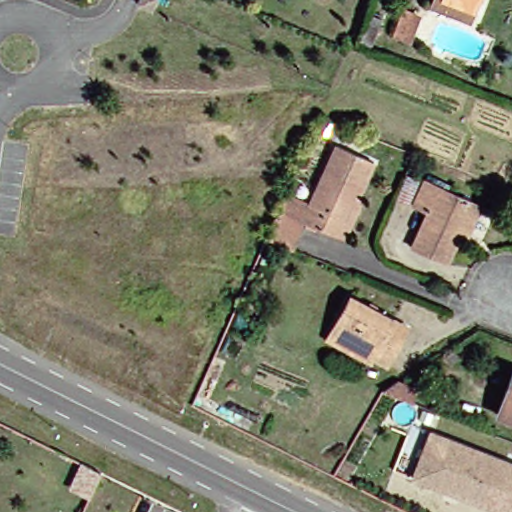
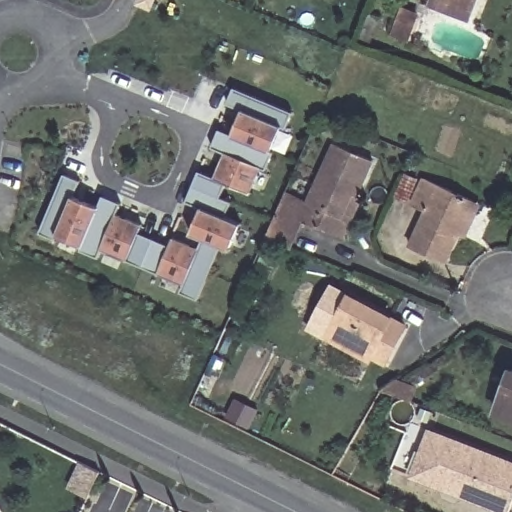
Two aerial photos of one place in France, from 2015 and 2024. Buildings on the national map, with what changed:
unchanged [(137,3),(139,0),(155,0),(151,9),(137,3)]
unchanged [(467,10),(441,0),(471,0),(467,10)]
unchanged [(416,14),(405,40),(391,34),(402,8),(416,14)]
new [(234,87),(293,112),(286,128),(281,126),(270,150),(233,135),(243,110),(227,104),(234,87)]
new [(154,239),(170,245),(173,237),(199,249),(204,239),(191,234),(201,207),(185,201),(199,170),(214,176),(225,150),(212,145),(219,129),(233,135),(270,150),(274,152),(266,169),(262,166),(250,194),(227,184),(221,197),(231,201),(226,217),(242,224),(230,250),(221,246),(198,300),(181,292),(184,284),(143,266),(154,239)]
unchanged [(301,223),(290,218),(298,201),(325,143),(362,160),(347,194),(343,191),(324,234),(301,223)]
new [(343,191),(347,194),(362,160),(374,166),(359,195),(364,198),(343,238),(324,234),(343,191)]
new [(76,196),(99,205),(82,248),(58,238),(41,231),(65,173),(83,181),(76,196)]
unchanged [(440,266),(405,250),(421,216),(407,209),(419,182),(468,205),(453,238),(440,266)]
unchanged [(298,201),(290,218),(301,223),(291,246),(258,231),(276,190),(298,201)]
new [(103,195),(122,202),(117,214),(142,225),(139,233),(154,239),(143,266),(102,250),(99,257),(81,250),(103,195)]
unchanged [(339,295),(394,325),(374,362),(319,331),(339,295)]
unchanged [(512,415),(491,408),(506,365),(512,366),(512,415)]
unchanged [(381,388),(396,378),(416,385),(410,400),(381,388)]
unchanged [(434,429),(512,459),(512,512),(511,512),(416,475),(434,429)]
unchanged [(81,463),(100,472),(89,496),(70,487),(81,463)]

